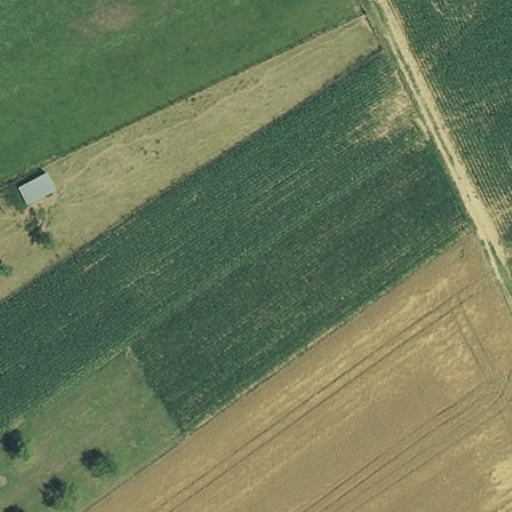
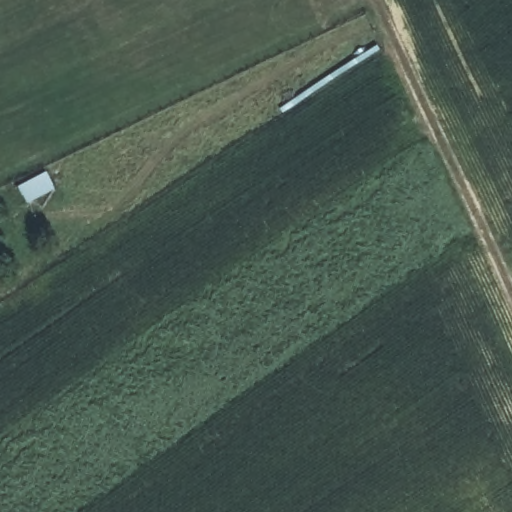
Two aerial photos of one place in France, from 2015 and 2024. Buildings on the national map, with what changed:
unchanged [(47,171),(56,191),(25,208),(16,188),(47,171)]

